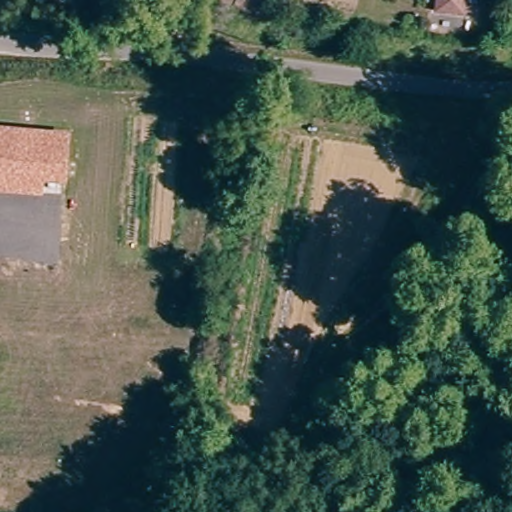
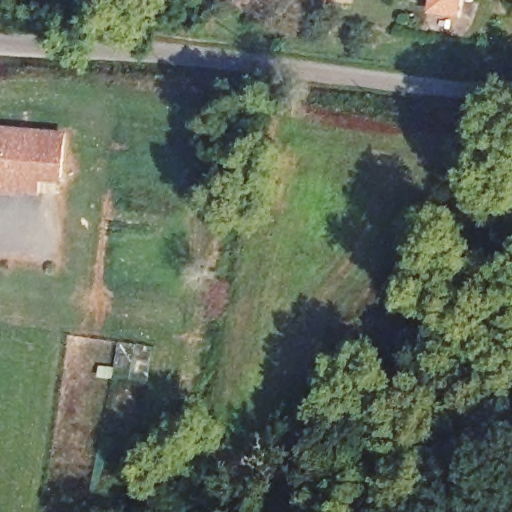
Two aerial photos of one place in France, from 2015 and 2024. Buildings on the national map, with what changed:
unchanged [(436,13),(437,0),(463,0),(461,16),(436,13)]
unchanged [(42,195),(0,192),(0,125),(70,131),(66,185),(44,182),(42,195)]

